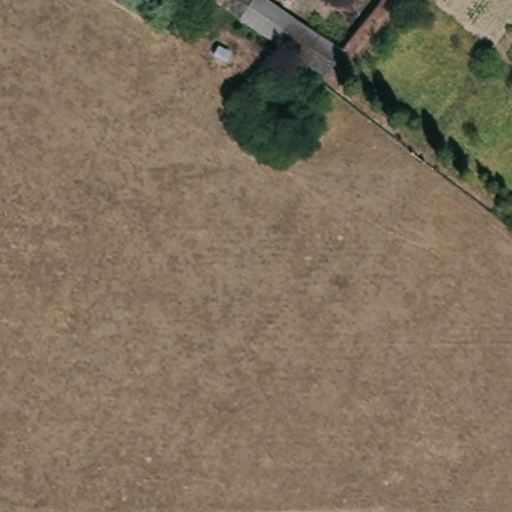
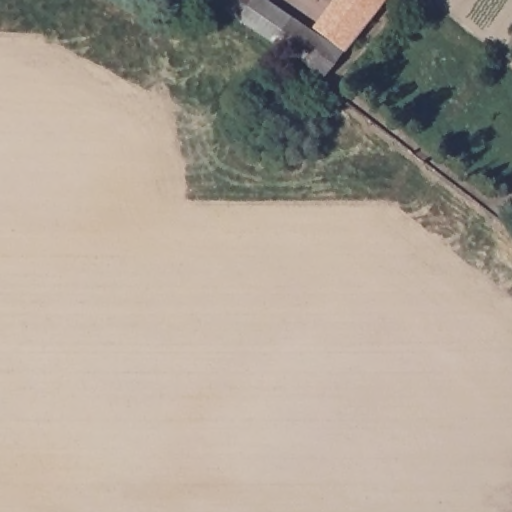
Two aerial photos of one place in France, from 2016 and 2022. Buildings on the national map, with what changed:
new [(234,16),(211,0),(248,0),(234,16)]
unchanged [(323,79),(234,16),(248,0),(264,0),(340,50),(323,79)]
new [(344,54),(340,50),(313,28),(335,0),(387,0),(344,54)]

